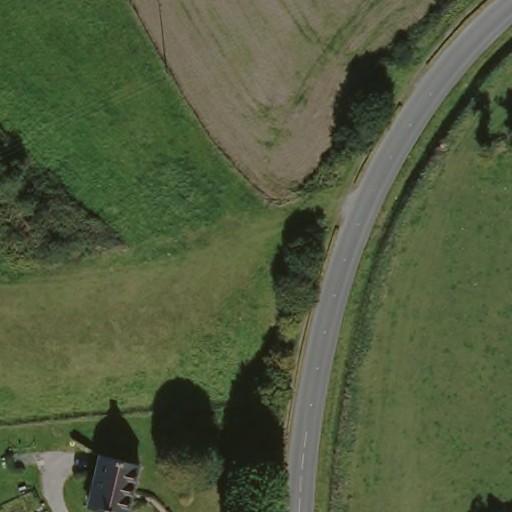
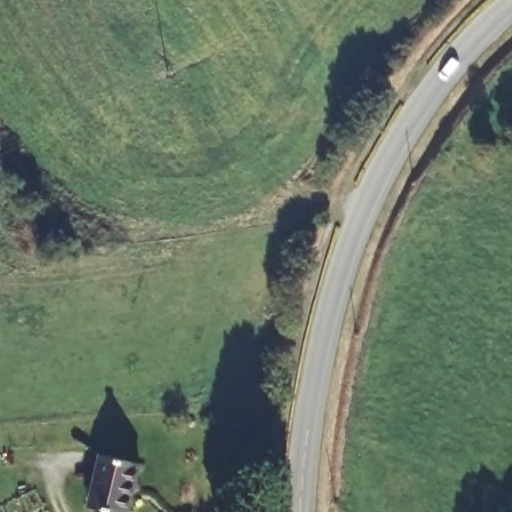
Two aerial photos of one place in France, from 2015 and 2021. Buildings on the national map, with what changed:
unchanged [(148,463),(136,512),(99,504),(110,455),(148,463)]

